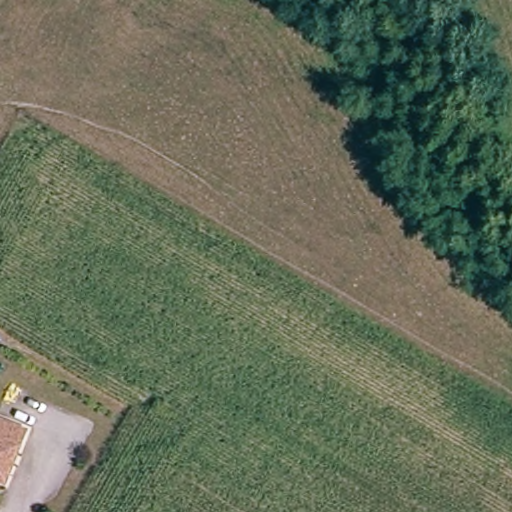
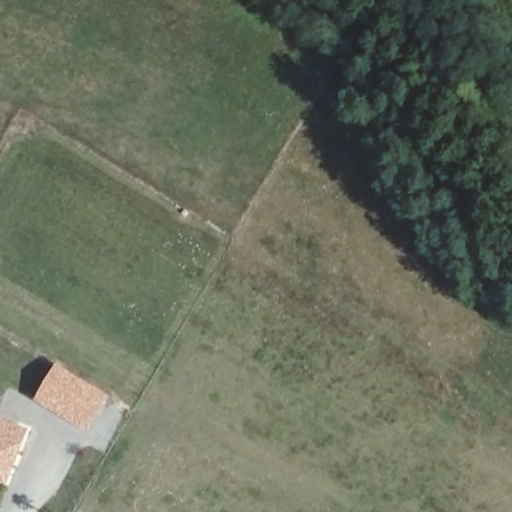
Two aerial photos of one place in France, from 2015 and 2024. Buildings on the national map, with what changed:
new [(55,362),(109,395),(86,433),(31,400),(55,362)]
unchanged [(9,477),(0,474),(0,413),(30,425),(9,477)]

